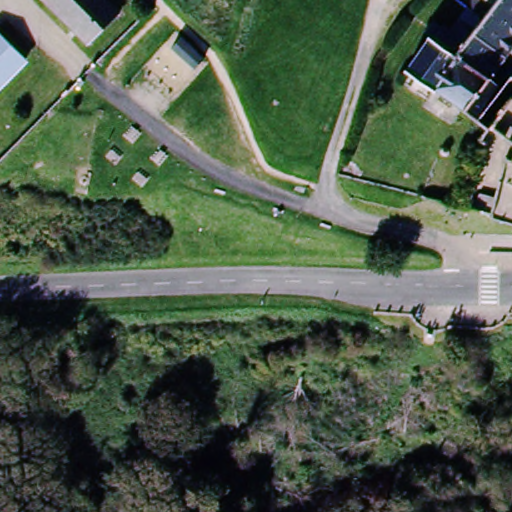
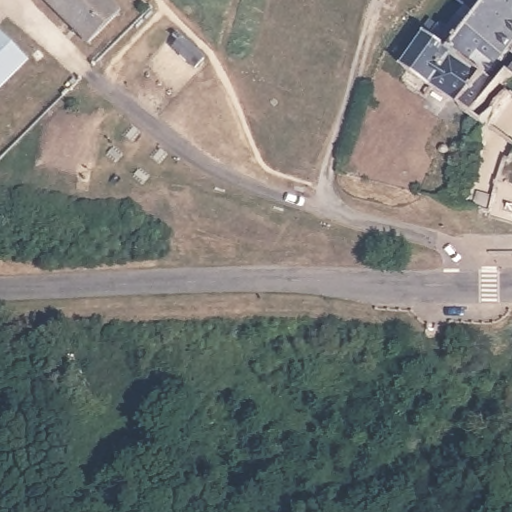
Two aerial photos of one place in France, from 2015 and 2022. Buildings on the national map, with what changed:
unchanged [(86,49),(42,1),(44,0),(94,0),(116,22),(86,49)]
unchanged [(430,32),(427,30),(434,22),(442,28),(446,24),(451,27),(468,6),(461,0),(496,0),(473,31),(477,34),(502,54),(487,73),(488,74),(497,81),(469,116),(403,67),(430,32)]
unchanged [(477,34),(473,31),(496,0),(512,0),(512,40),(502,54),(477,34)]
unchanged [(0,88),(0,33),(27,63),(0,88)]

